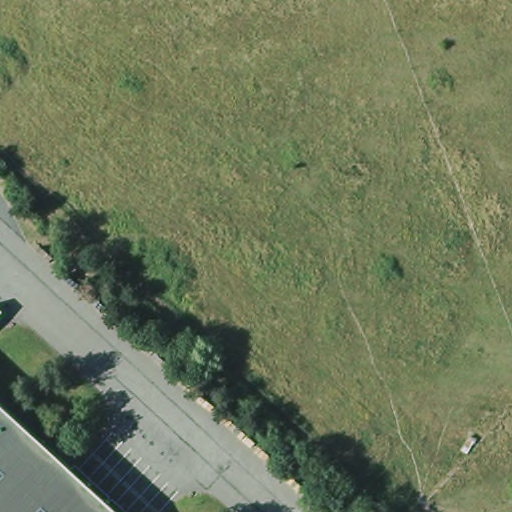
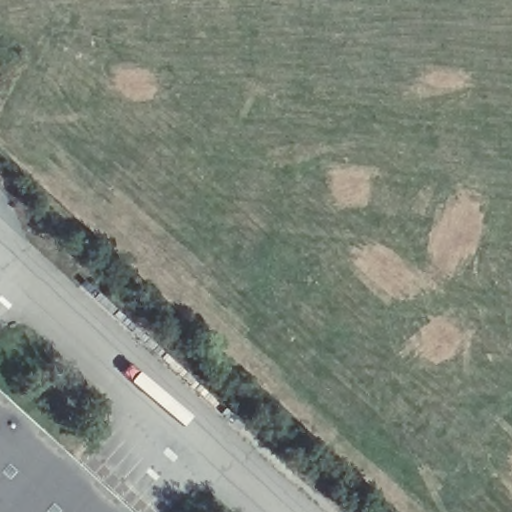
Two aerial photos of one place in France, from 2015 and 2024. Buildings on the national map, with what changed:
unchanged [(0,406),(116,512),(0,512),(0,406)]

